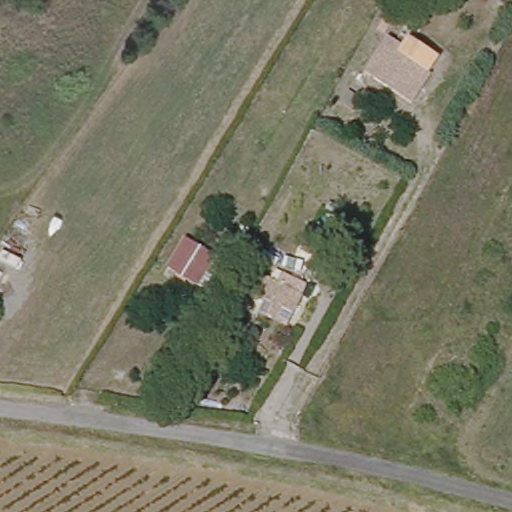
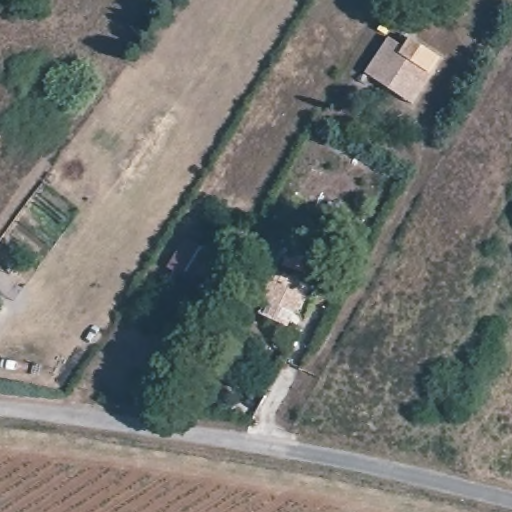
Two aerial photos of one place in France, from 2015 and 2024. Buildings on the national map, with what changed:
unchanged [(385,87),(365,75),(385,42),(403,55),(411,40),(438,59),(416,93),(408,104),(385,87)]
unchanged [(197,288),(165,265),(190,232),(221,256),(197,288)]
unchanged [(263,300),(251,292),(263,274),(275,280),(280,271),(305,288),(286,328),(255,313),(263,300)]

